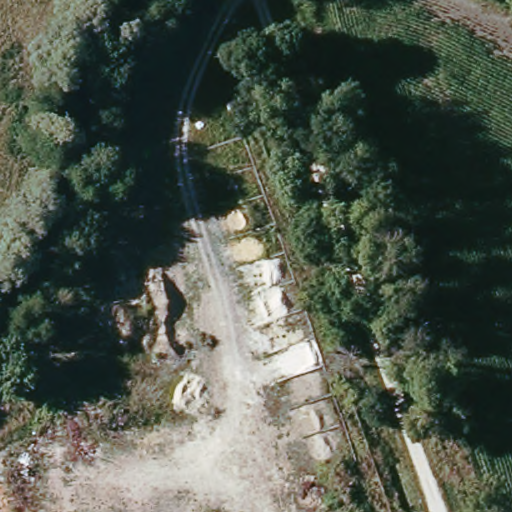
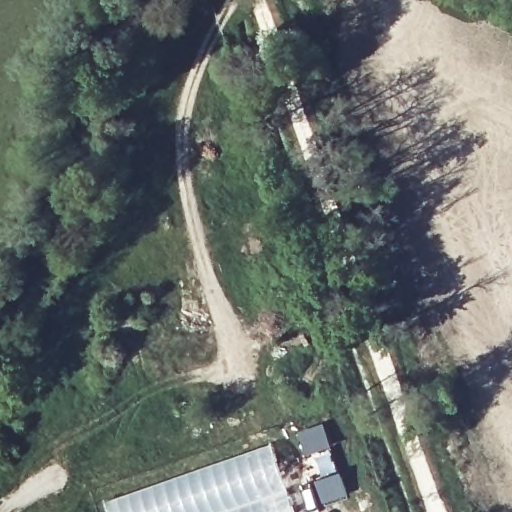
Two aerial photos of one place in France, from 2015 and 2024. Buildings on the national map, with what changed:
new [(322,505),(312,481),(321,477),(312,455),(305,457),(296,432),(322,422),(330,448),(347,496),(322,505)]
new [(271,442),(296,512),(106,512),(103,501),(223,460),(271,442)]

